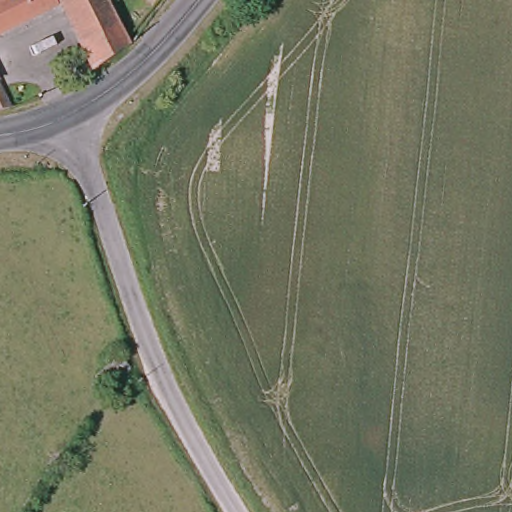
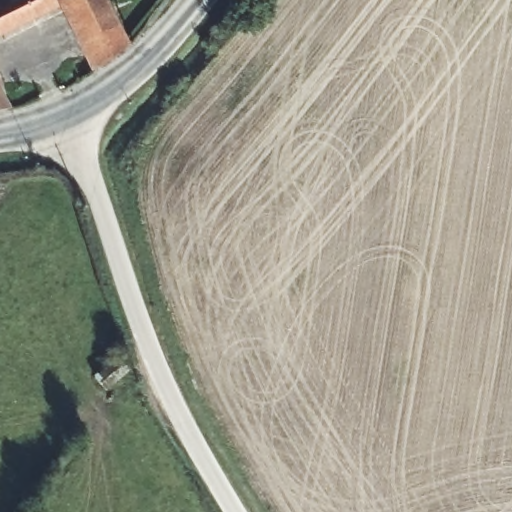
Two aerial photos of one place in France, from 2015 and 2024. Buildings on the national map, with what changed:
unchanged [(49,5),(16,17),(15,14),(0,20),(0,0),(50,0),(49,5)]
unchanged [(125,51),(86,71),(75,42),(64,46),(59,32),(69,28),(58,1),(61,0),(103,0),(125,51)]
unchanged [(0,80),(15,119),(0,120),(0,80)]
unchanged [(99,379),(113,356),(126,364),(112,387),(99,379)]

